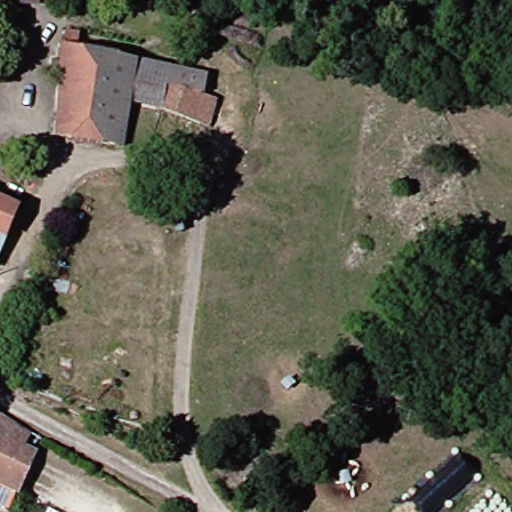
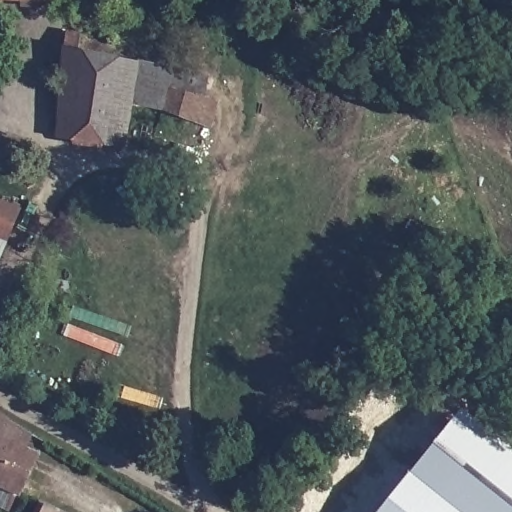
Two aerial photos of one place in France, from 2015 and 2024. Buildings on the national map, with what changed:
unchanged [(109,6),(1,1),(1,0),(109,0),(109,6)]
unchanged [(137,98),(131,149),(63,141),(70,82),(58,81),(59,65),(70,65),(72,34),(88,34),(89,51),(142,60),(141,69),(180,83),(172,111),(137,98)]
unchanged [(228,101),(220,129),(172,111),(180,83),(228,101)]
unchanged [(20,243),(8,273),(0,269),(0,196),(33,210),(20,243)]
new [(512,447),(512,512),(378,512),(461,406),(512,447)]
unchanged [(32,498),(0,484),(0,434),(50,456),(32,498)]

